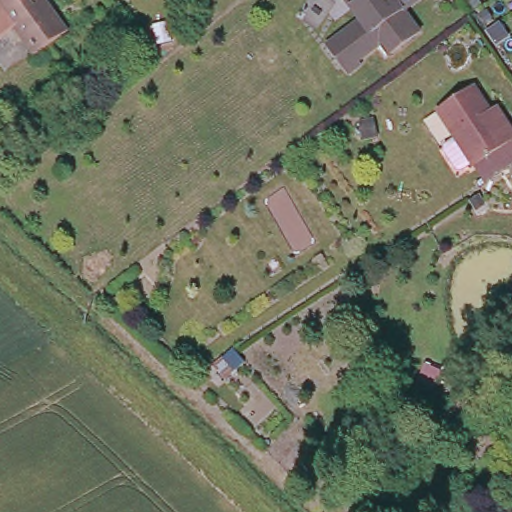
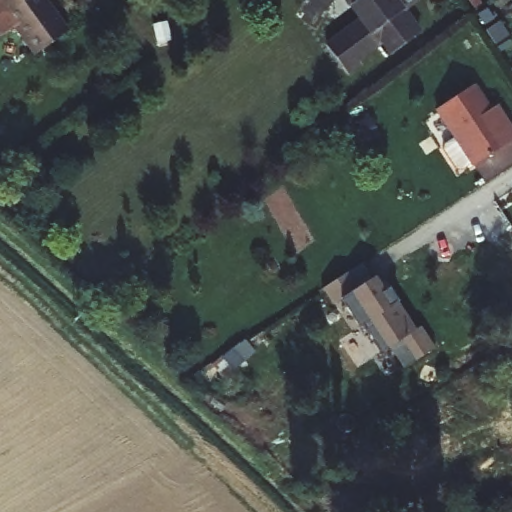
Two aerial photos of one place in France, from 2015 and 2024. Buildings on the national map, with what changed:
unchanged [(34,55),(0,6),(0,0),(57,0),(61,5),(52,11),(67,33),(34,55)]
unchanged [(361,20),(346,0),(418,0),(404,10),(422,32),(393,54),(384,41),(359,60),(361,64),(349,74),(327,45),(361,20)]
unchanged [(505,127),(511,124),(512,126),(512,142),(478,165),(439,109),(476,85),(505,127)]
new [(321,289),(361,263),(371,279),(374,275),(384,290),(389,288),(398,301),(416,329),(419,326),(434,347),(403,368),(389,347),(381,352),(364,324),(359,327),(341,299),(332,305),(321,289)]

